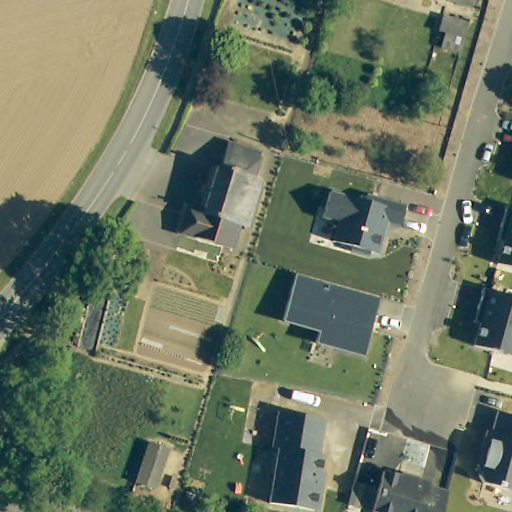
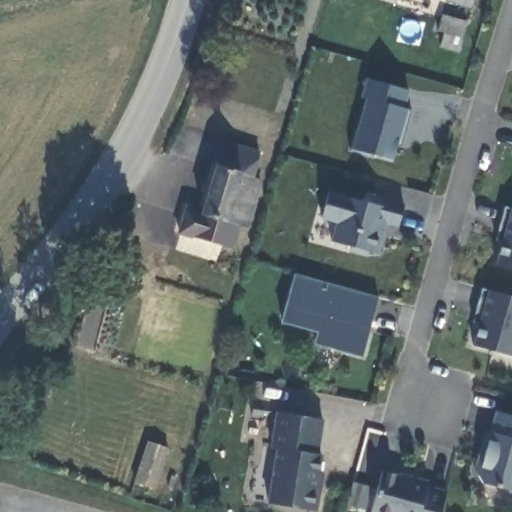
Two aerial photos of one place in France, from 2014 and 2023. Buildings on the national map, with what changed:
unchanged [(475,23),(473,41),(448,37),(450,19),(475,23)]
new [(405,107),(412,110),(401,147),(398,146),(395,161),(352,149),(367,97),(362,95),(367,77),(410,89),(405,107)]
unchanged [(227,138),(260,147),(252,173),(261,176),(249,220),(240,217),(206,207),(227,138)]
unchanged [(330,193),(363,201),(366,194),(405,206),(399,227),(386,223),(378,254),(331,241),(335,222),(323,217),(330,193)]
unchanged [(233,242),(182,229),(190,202),(206,207),(240,217),(233,242)]
unchanged [(512,268),(496,263),(502,242),(496,240),(505,207),(512,208),(512,268)]
unchanged [(297,273),(377,296),(377,297),(362,357),(314,343),(318,332),(281,321),(297,273)]
unchanged [(512,358),(472,347),(478,325),(472,322),(481,289),(512,298),(512,358)]
unchanged [(268,503),(276,447),(270,447),(277,412),(323,420),(318,454),(323,455),(321,473),(325,474),(316,512),(268,503)]
unchanged [(480,474),(477,473),(488,431),(492,431),(497,412),(512,416),(512,491),(482,482),(480,474)]
unchanged [(150,444),(169,450),(159,488),(139,482),(150,444)]
unchanged [(374,512),(385,471),(412,478),(413,476),(432,482),(431,486),(451,492),(445,512),(374,512)]

